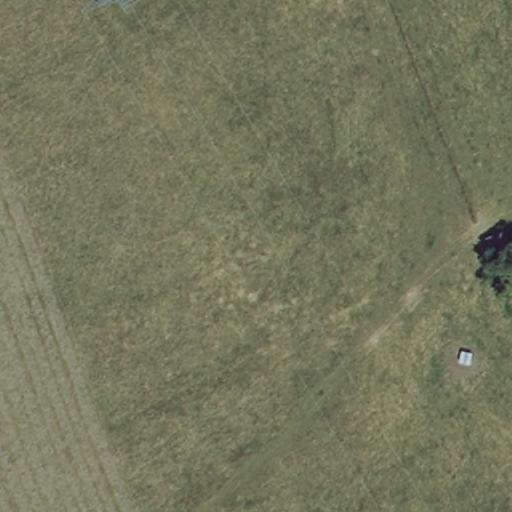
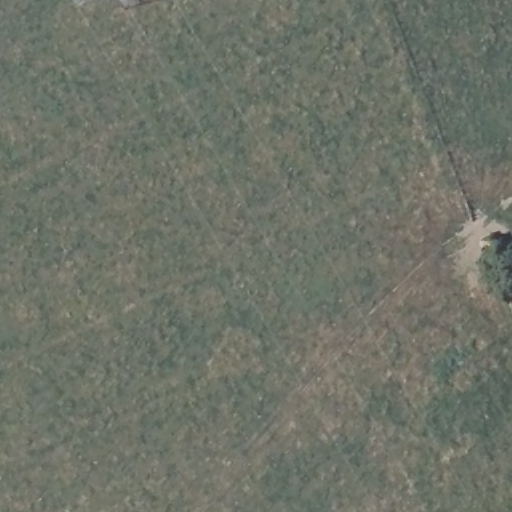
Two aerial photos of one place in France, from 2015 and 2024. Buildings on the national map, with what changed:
unchanged [(486,270),(476,239),(504,230),(512,258),(512,261),(486,270)]

